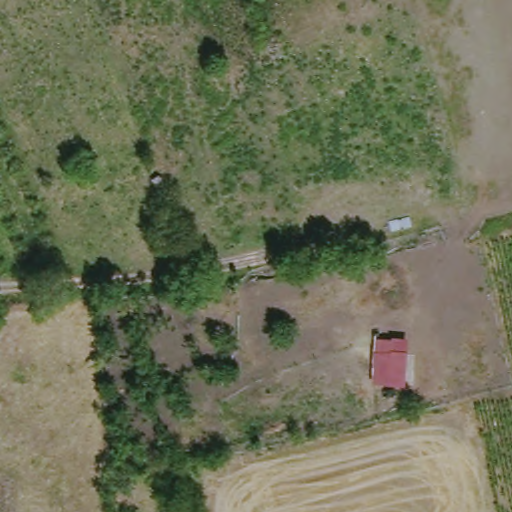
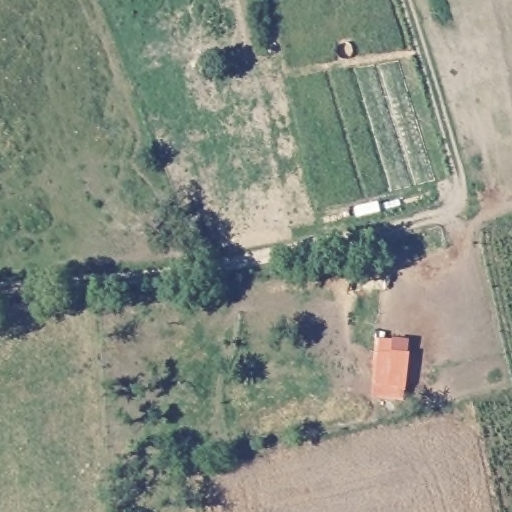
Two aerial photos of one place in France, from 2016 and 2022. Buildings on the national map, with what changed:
unchanged [(392,338),(392,335),(408,336),(405,386),(372,383),(375,335),(392,338)]

